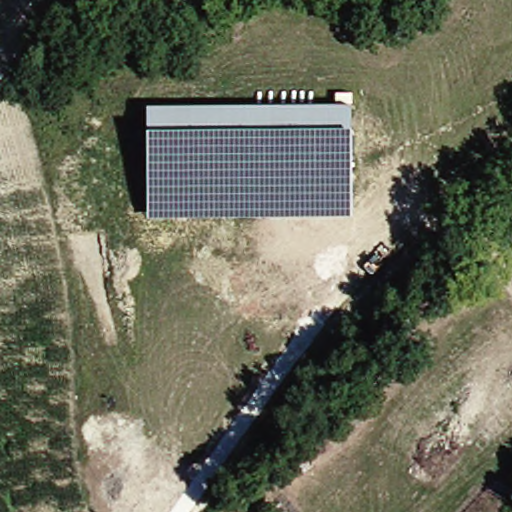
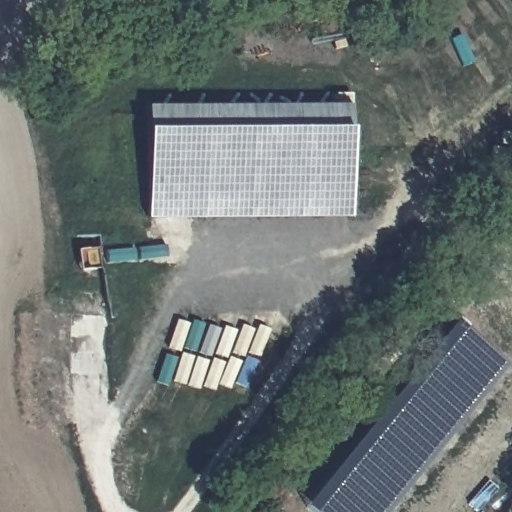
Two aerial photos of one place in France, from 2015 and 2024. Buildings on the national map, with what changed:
unchanged [(147,116),(351,107),(355,197),(151,206),(147,116)]
unchanged [(512,236),(512,242),(509,239),(512,236)]
new [(312,512),(306,506),(458,322),(507,366),(389,512),(312,512)]

